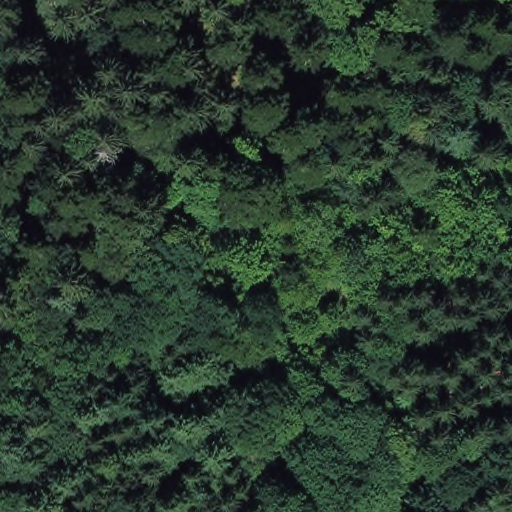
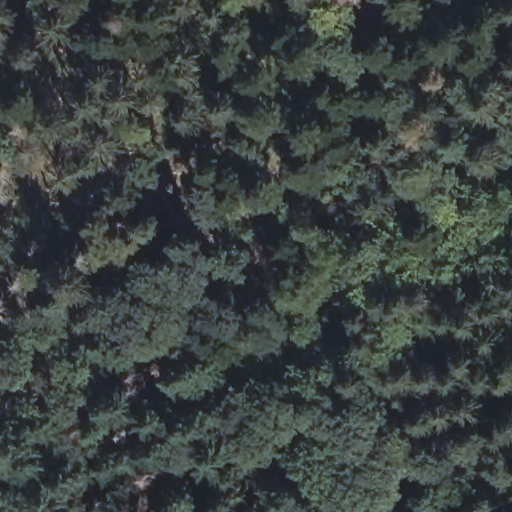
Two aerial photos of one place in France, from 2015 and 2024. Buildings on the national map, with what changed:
[]

